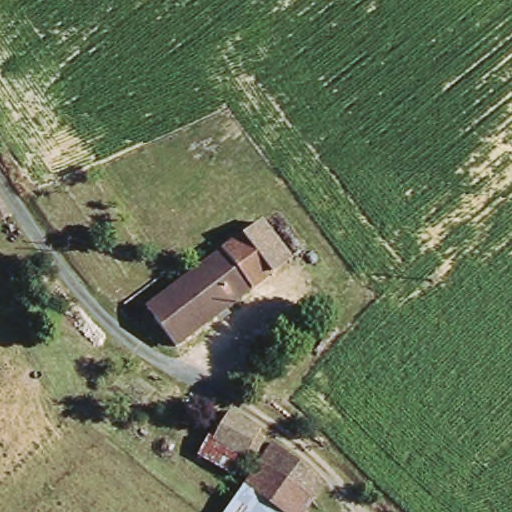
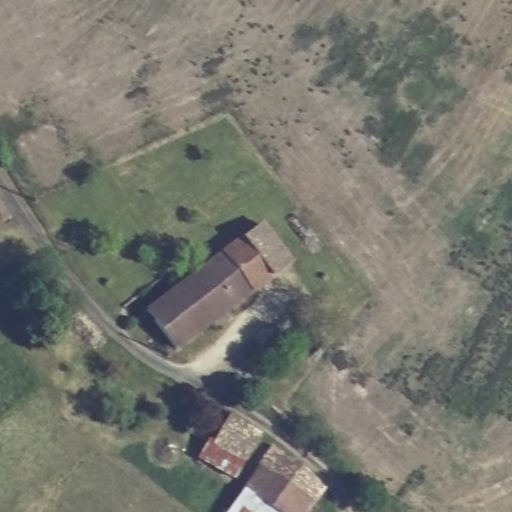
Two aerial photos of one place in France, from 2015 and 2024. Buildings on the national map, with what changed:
unchanged [(8,210),(6,211),(0,215),(0,197),(8,210)]
unchanged [(274,269),(241,226),(263,211),(296,252),(274,269)]
unchanged [(159,313),(149,301),(241,226),(274,269),(190,335),(172,349),(150,321),(159,313)]
unchanged [(225,430),(230,421),(264,440),(260,446),(237,487),(198,466),(208,446),(215,449),(225,430)]
unchanged [(317,512),(264,512),(244,497),(274,457),(327,498),(317,512)]
unchanged [(264,512),(233,512),(244,497),(264,512)]

